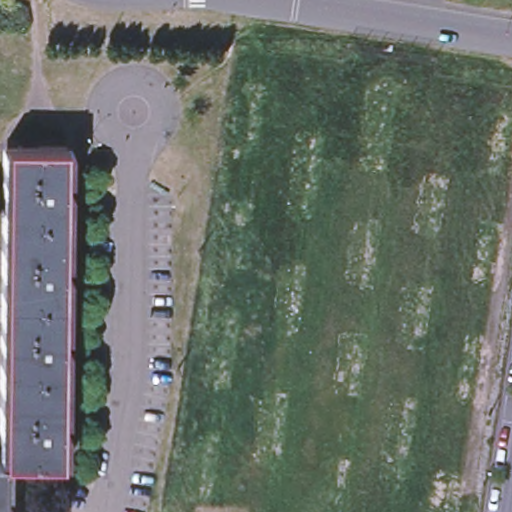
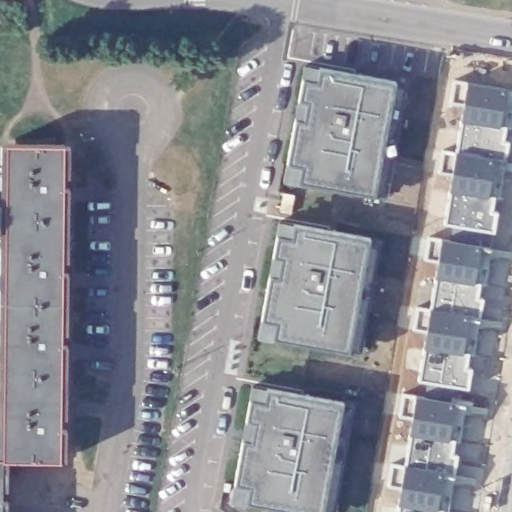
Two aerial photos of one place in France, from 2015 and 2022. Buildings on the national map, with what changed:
new [(305,62),(393,80),(407,82),(387,197),(375,195),(284,179),(305,62)]
new [(507,92),(501,129),(507,130),(503,145),(509,146),(501,199),(494,199),(492,216),(498,216),(495,234),(445,224),(469,84),(507,92)]
unchanged [(66,144),(62,459),(4,458),(5,456),(8,143),(66,144)]
new [(279,220),(368,237),(382,240),(360,354),(348,351),(258,336),(279,220)]
new [(482,247),(475,285),(480,286),(479,302),(483,303),(480,322),(468,320),(464,356),(469,356),(467,370),(472,371),(470,392),(419,381),(442,241),(482,247)]
new [(253,385),(344,402),(355,404),(335,512),(299,512),(231,500),(236,480),(253,385)]
new [(453,442),(456,443),(455,458),(458,459),(453,480),(442,477),(437,512),(398,512),(417,397),(457,406),(453,442)]
unchanged [(3,512),(0,512),(0,456),(5,456),(4,458),(3,512)]

